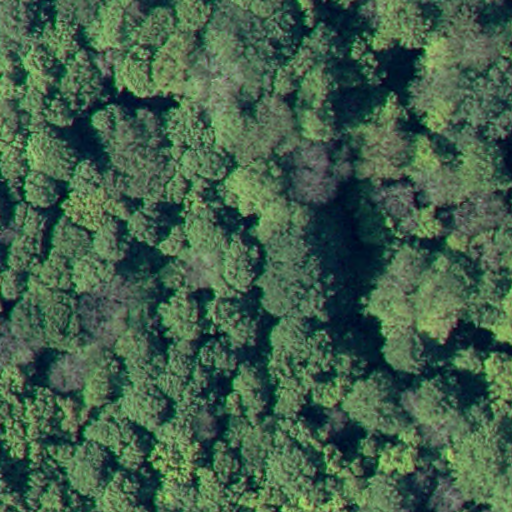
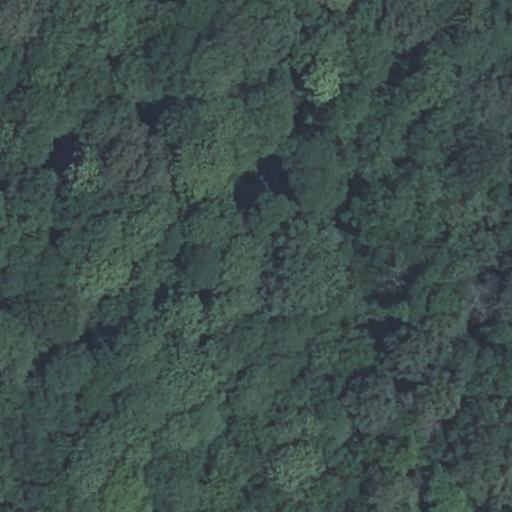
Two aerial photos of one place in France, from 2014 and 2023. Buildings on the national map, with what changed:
unchanged [(445,80),(436,98),(419,89),(427,71),(445,80)]

